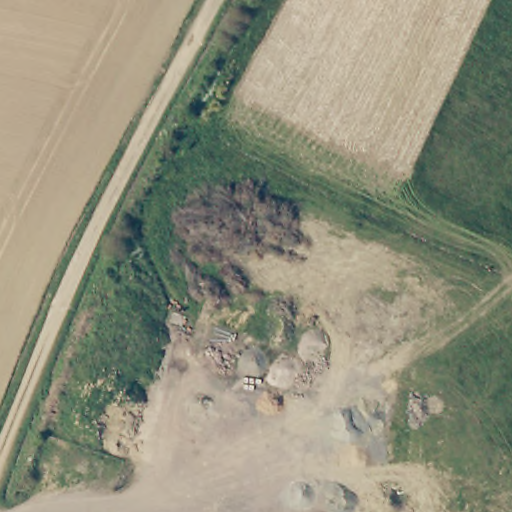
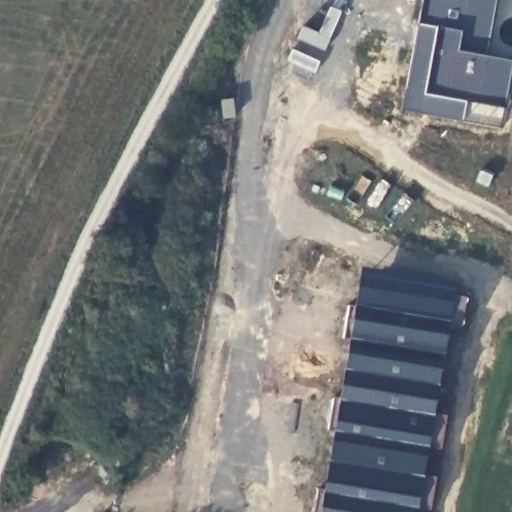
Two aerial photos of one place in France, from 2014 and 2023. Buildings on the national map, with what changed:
new [(387,113),(406,0),(512,0),(512,25),(495,130),(387,113)]
new [(449,278),(446,321),(468,322),(470,387),(445,388),(446,416),(432,418),(416,512),(312,512),(353,263),(449,278)]

